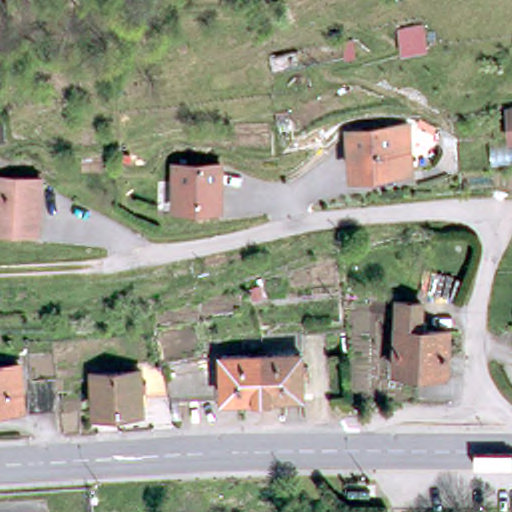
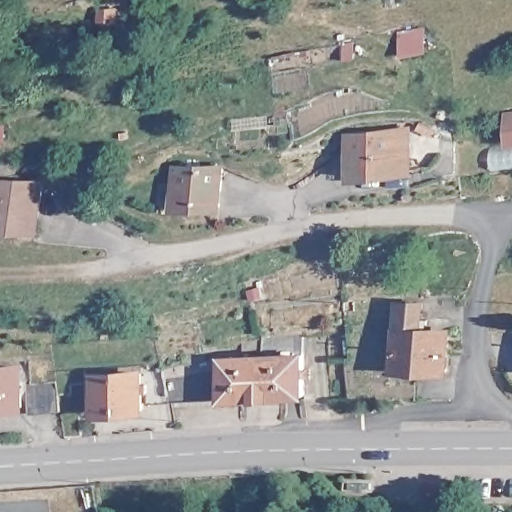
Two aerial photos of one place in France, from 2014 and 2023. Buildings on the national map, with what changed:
unchanged [(510,149),(507,121),(512,120),(512,149),(510,149)]
unchanged [(409,139),(412,181),(353,185),(351,148),(350,144),(378,141),(409,139)]
unchanged [(227,215),(165,216),(165,205),(165,195),(182,194),(182,177),(226,176),(227,189),(227,215)]
unchanged [(41,236),(2,236),(0,226),(0,192),(40,191),(41,236)]
unchanged [(0,236),(0,225),(2,236),(0,236)]
unchanged [(425,348),(453,348),(452,388),(402,387),(404,323),(426,323),(425,348)]
unchanged [(305,338),(307,402),(269,404),(267,362),(262,341),(305,338)]
unchanged [(225,364),(267,362),(269,404),(226,406),(225,364)]
unchanged [(100,420),(98,386),(143,382),(143,385),(168,383),(167,381),(215,378),(218,407),(174,410),(172,404),(145,406),(146,417),(100,420)]
unchanged [(0,415),(0,380),(17,379),(19,414),(0,415)]
unchanged [(22,387),(53,384),(57,413),(27,416),(22,387)]

